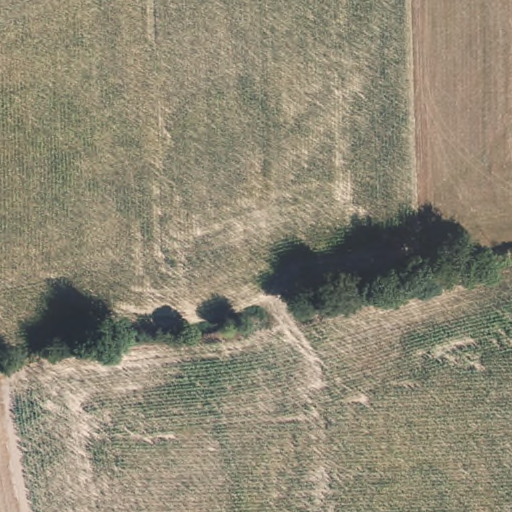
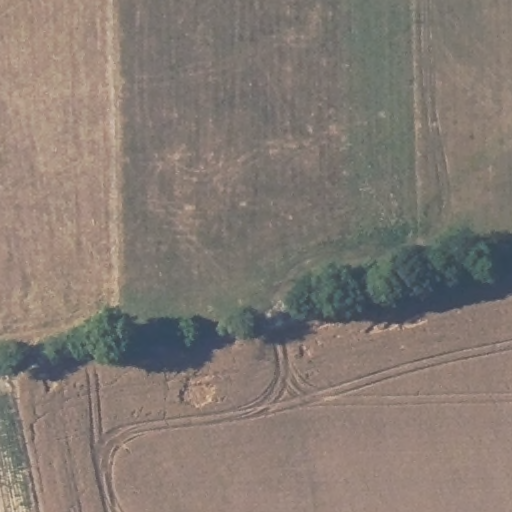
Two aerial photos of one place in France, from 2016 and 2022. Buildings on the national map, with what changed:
[]

